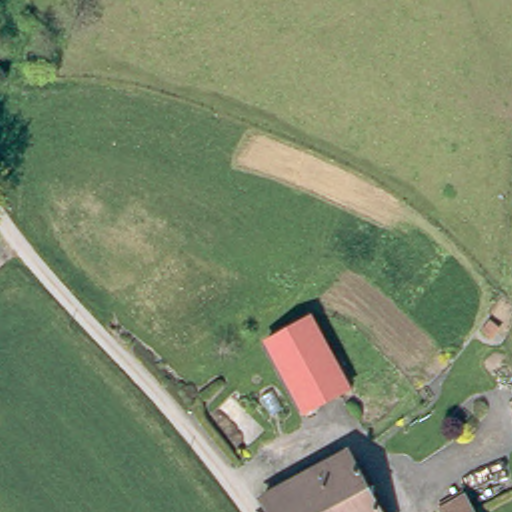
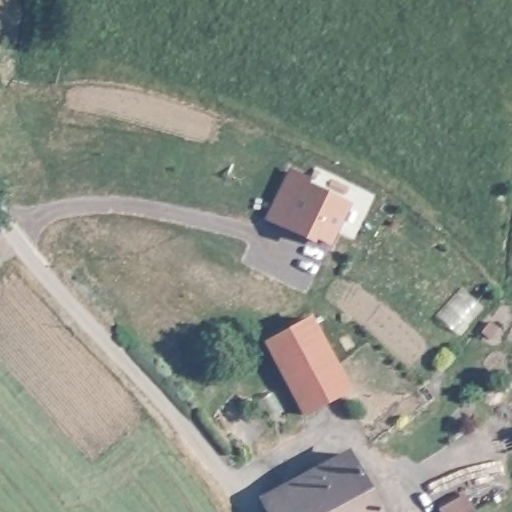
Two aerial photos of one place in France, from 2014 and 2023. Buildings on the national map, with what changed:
new [(352,202),(332,246),(265,219),(289,167),(312,178),(310,182),(352,202)]
unchanged [(302,413),(264,336),(309,312),(347,388),(302,413)]
unchanged [(254,493),(343,448),(381,512),(266,512),(254,493)]
unchanged [(439,505),(465,490),(467,492),(475,506),(478,512),(443,512),(439,505)]

